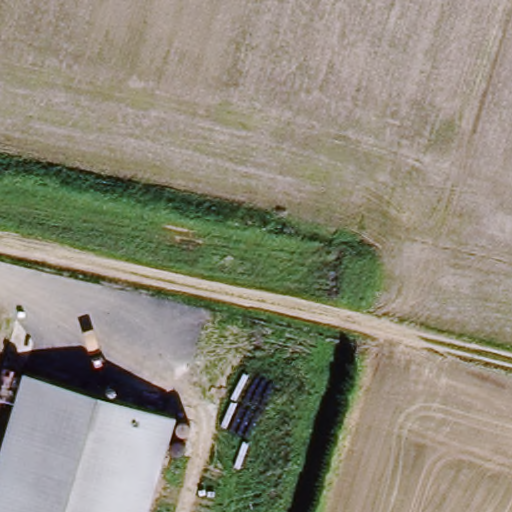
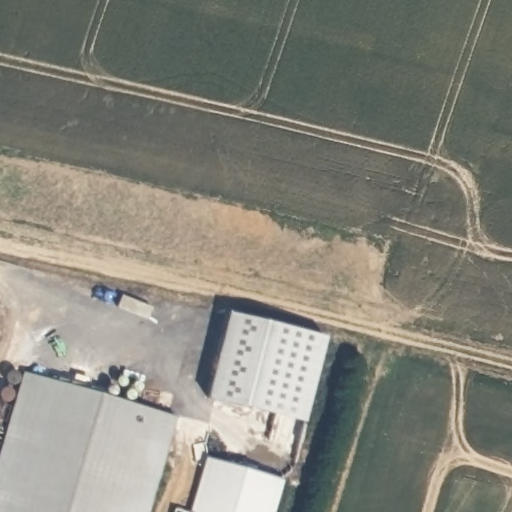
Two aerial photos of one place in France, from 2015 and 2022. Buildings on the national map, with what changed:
new [(233,320),(323,340),(305,423),(215,403),(233,320)]
unchanged [(177,418),(150,512),(0,512),(0,461),(26,373),(177,418)]
new [(276,512),(193,512),(210,457),(285,479),(276,512)]
new [(193,512),(177,512),(178,508),(193,512)]

